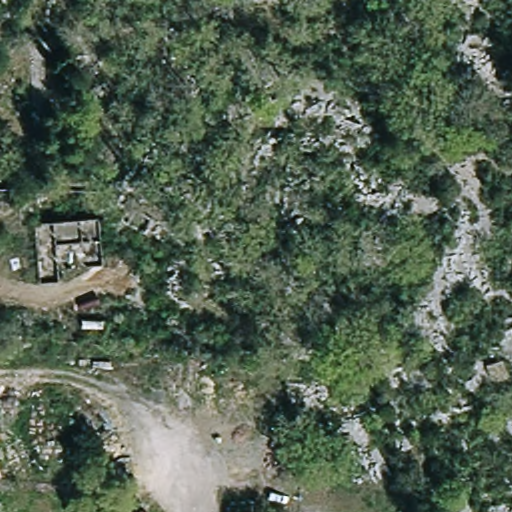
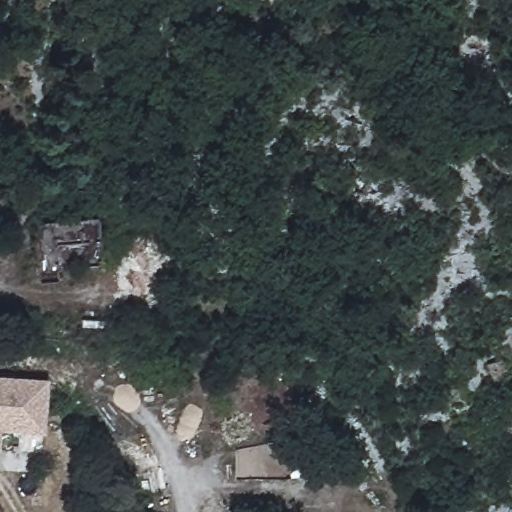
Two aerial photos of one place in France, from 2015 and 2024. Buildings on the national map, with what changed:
new [(43,434),(0,431),(0,378),(48,381),(43,434)]

